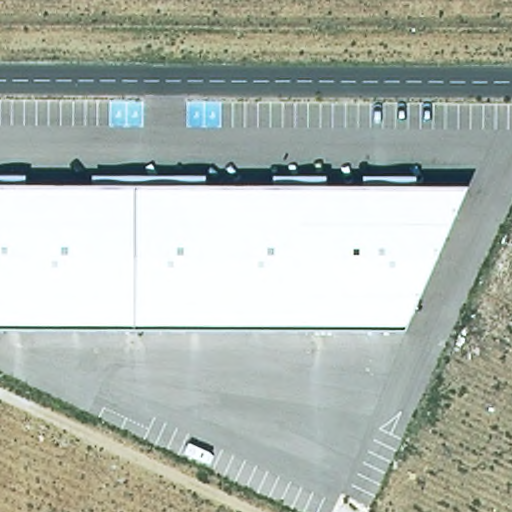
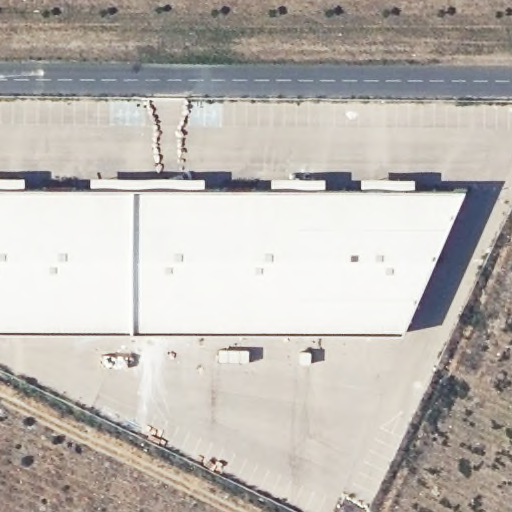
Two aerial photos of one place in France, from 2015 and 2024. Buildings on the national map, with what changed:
unchanged [(395,335),(0,336),(0,192),(462,193),(395,335)]

